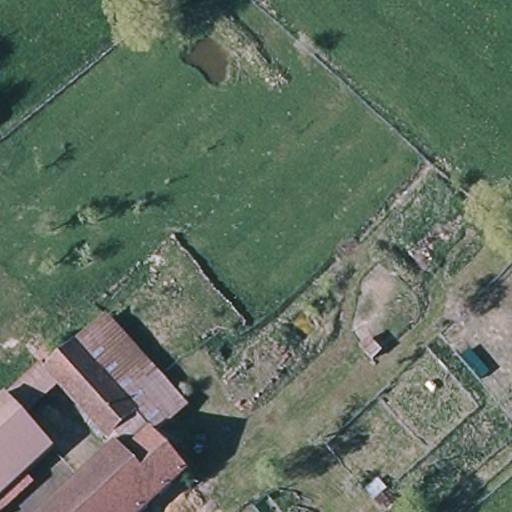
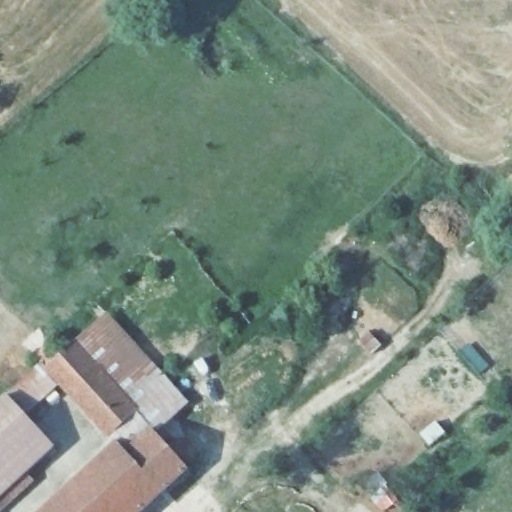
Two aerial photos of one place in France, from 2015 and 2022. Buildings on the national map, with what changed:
unchanged [(184,397),(150,429),(126,449),(67,384),(27,420),(20,411),(0,429),(0,403),(103,309),(184,397)]
unchanged [(27,420),(55,450),(0,500),(0,429),(20,411),(27,420)]
unchanged [(150,429),(185,466),(136,512),(60,512),(126,449),(150,429)]

